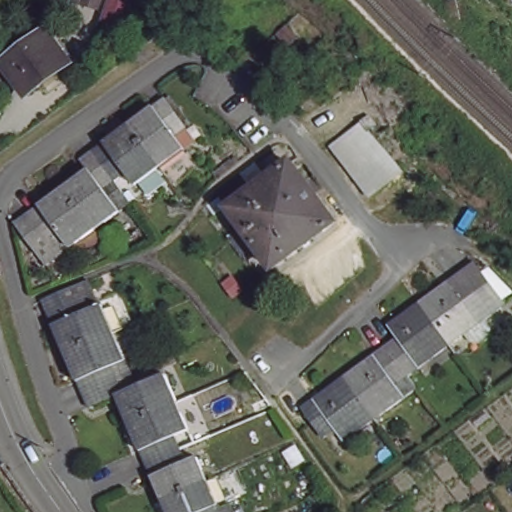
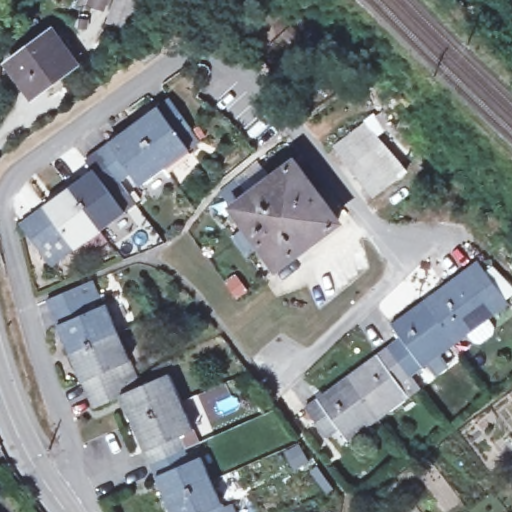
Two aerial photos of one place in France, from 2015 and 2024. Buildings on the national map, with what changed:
unchanged [(77,0),(103,0),(100,8),(77,0)]
unchanged [(107,18),(113,0),(133,0),(126,24),(107,18)]
unchanged [(74,63),(27,97),(4,65),(49,30),(74,63)]
unchanged [(167,101),(187,129),(174,139),(183,152),(162,166),(132,125),(167,101)]
unchanged [(406,174),(373,197),(337,147),(370,124),(406,174)]
unchanged [(132,125),(162,166),(137,184),(129,171),(116,180),(96,150),(132,125)]
unchanged [(116,180),(104,188),(120,211),(95,228),(66,187),(90,170),(84,158),(96,150),(116,180)]
unchanged [(339,224),(278,269),(222,192),(229,186),(239,176),(253,195),(296,165),(339,224)]
unchanged [(95,228),(45,262),(17,221),(66,187),(95,228)]
unchanged [(448,277),(459,269),(467,280),(490,308),(448,341),(417,300),(448,277)]
unchanged [(46,304),(79,289),(85,302),(99,296),(112,326),(64,346),(46,304)]
unchanged [(448,341),(406,374),(385,344),(397,335),(389,321),(417,300),(448,341)]
unchanged [(124,353),(110,359),(116,372),(81,387),(64,346),(112,326),(124,353)]
unchanged [(406,374),(397,381),(406,393),(375,417),(345,375),(385,344),(406,374)]
unchanged [(113,389),(86,400),(81,387),(116,372),(121,385),(161,369),(172,396),(125,417),(113,389)]
unchanged [(344,439),(335,426),(324,434),(304,406),(345,375),(375,417),(344,439)]
unchanged [(125,417),(172,396),(184,422),(171,428),(177,441),(142,456),(125,417)]
unchanged [(157,493),(142,456),(177,441),(182,452),(191,448),(202,474),(157,493)]
unchanged [(0,451),(0,446),(2,450),(0,451)]
unchanged [(157,493),(202,474),(212,499),(202,504),(205,512),(165,512),(157,493)]

